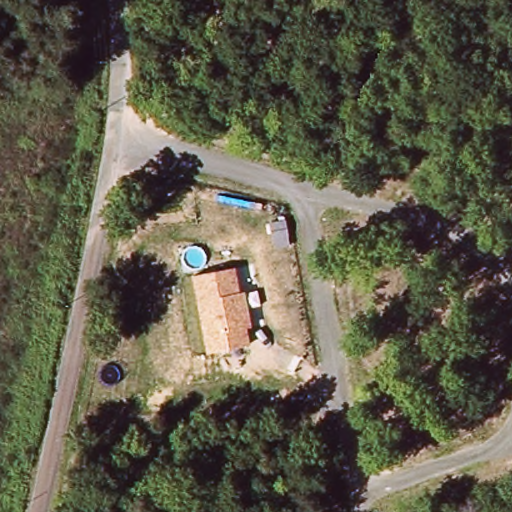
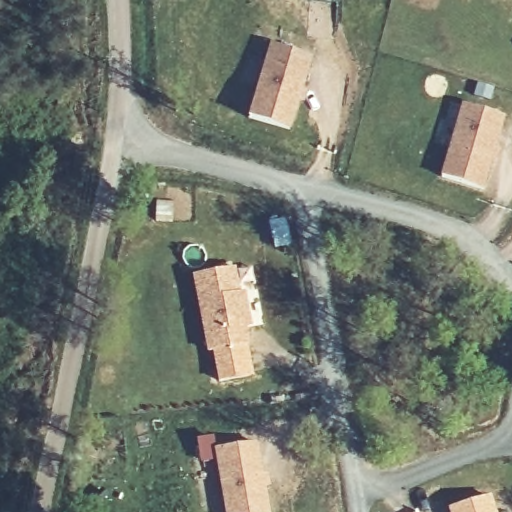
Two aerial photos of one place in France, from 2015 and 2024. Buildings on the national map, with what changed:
new [(247,118),(268,44),(312,57),(288,130),(247,118)]
new [(482,190),(439,177),(460,104),(504,117),(482,190)]
unchanged [(235,271),(238,295),(245,295),(250,328),(245,330),(248,348),(205,356),(190,279),(235,271)]
new [(212,450),(257,442),(270,512),(223,512),(212,450)]
new [(491,495),(496,512),(448,512),(447,509),(491,495)]

